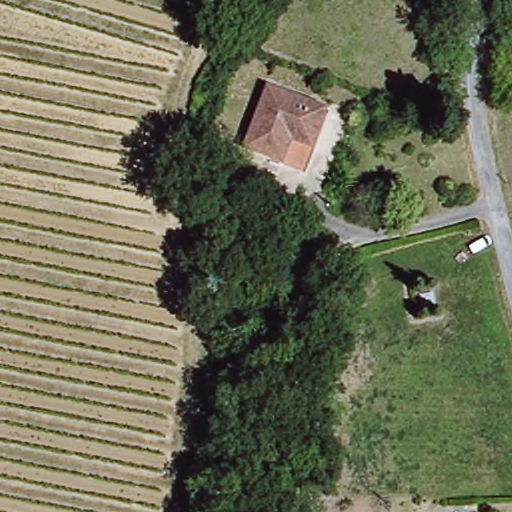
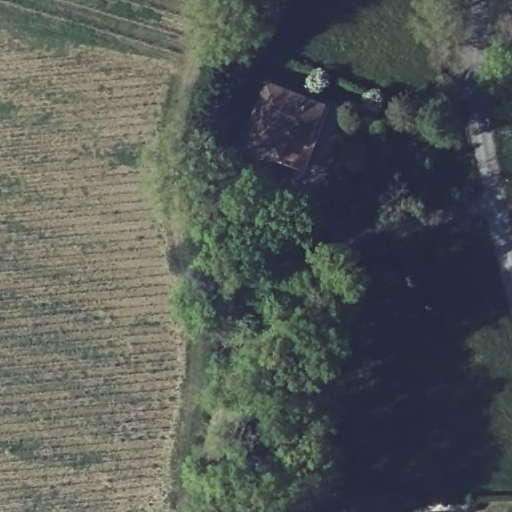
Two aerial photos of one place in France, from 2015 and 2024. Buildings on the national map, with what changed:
unchanged [(323,104),(297,153),(247,126),(273,78),(323,104)]
unchanged [(446,508),(447,512),(414,512),(413,510),(446,508)]

